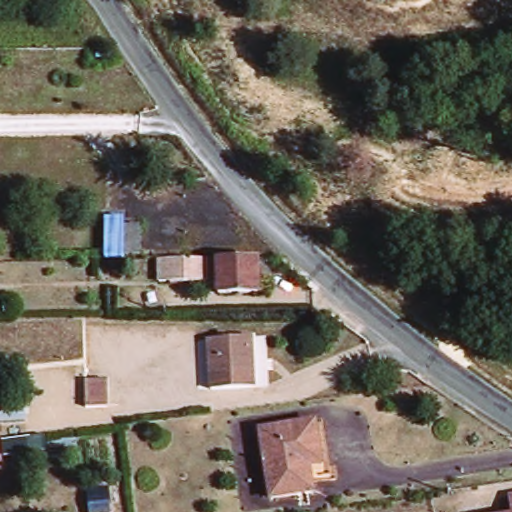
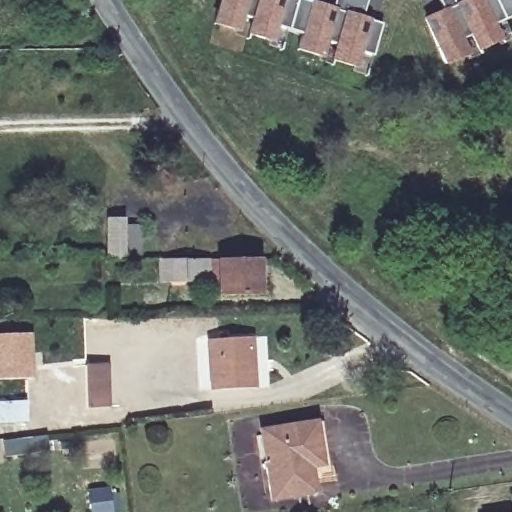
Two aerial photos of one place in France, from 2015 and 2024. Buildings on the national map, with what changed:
new [(307,0),(331,8),(333,0),(367,0),(361,16),(378,23),(368,56),(363,75),(353,69),(294,51),(300,34),(286,30),(280,49),(270,44),(210,24),(218,0),(307,0)]
new [(440,9),(436,0),(512,0),(512,16),(502,20),(509,40),(500,41),(441,67),(420,19),(440,9)]
unchanged [(138,253),(136,262),(116,260),(116,215),(137,215),(137,220),(152,221),(155,254),(138,253)]
unchanged [(261,292),(224,294),(222,281),(162,282),(161,256),(260,253),(261,292)]
new [(28,337),(29,364),(30,382),(0,383),(0,338),(23,337),(28,337)]
unchanged [(266,391),(225,393),(220,343),(262,339),(266,391)]
unchanged [(107,376),(110,407),(87,409),(84,378),(107,376)]
new [(24,401),(25,422),(0,423),(0,402),(24,401)]
unchanged [(343,491),(282,501),(271,431),(333,422),(343,491)]
new [(44,436),(45,451),(4,456),(2,441),(44,436)]
new [(105,487),(108,512),(88,512),(85,490),(105,487)]

